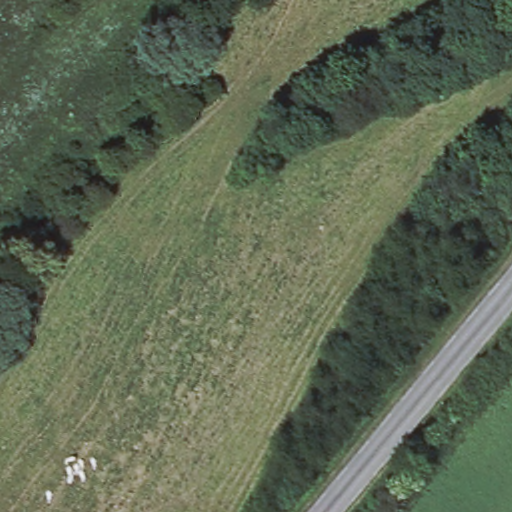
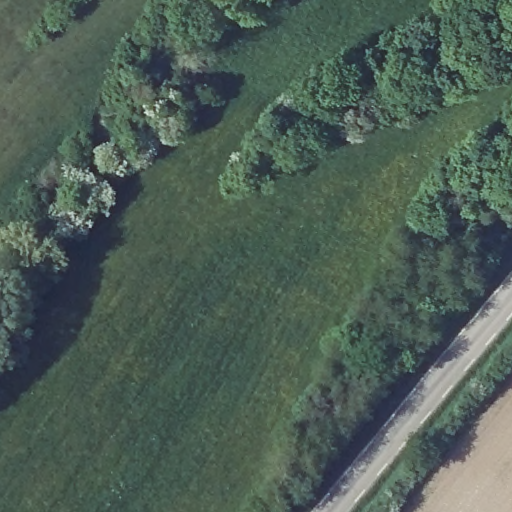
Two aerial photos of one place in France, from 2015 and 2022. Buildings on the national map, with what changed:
unchanged [(512,215),(512,228),(508,226),(512,215)]

